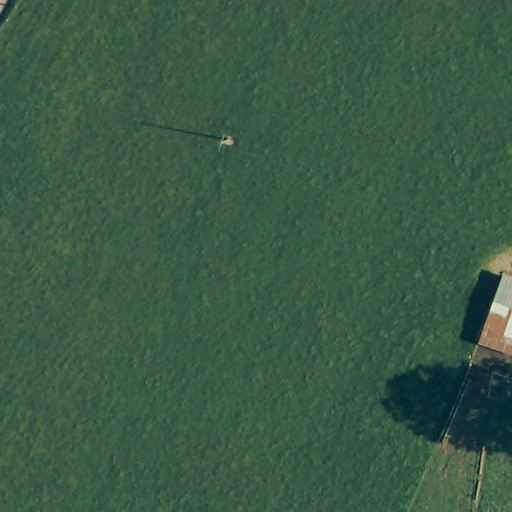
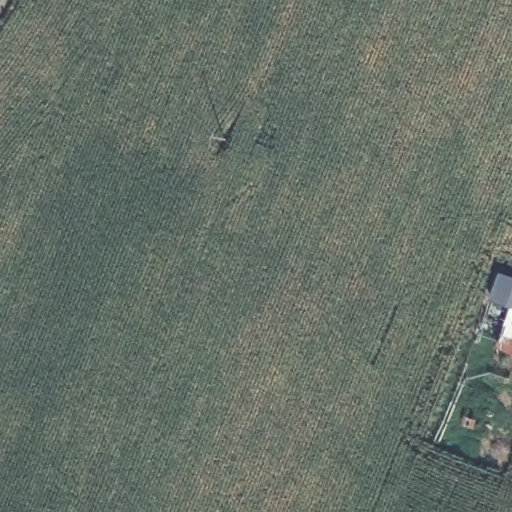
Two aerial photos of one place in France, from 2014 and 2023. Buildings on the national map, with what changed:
unchanged [(501,271),(512,275),(512,341),(480,330),(500,271),(501,271)]

